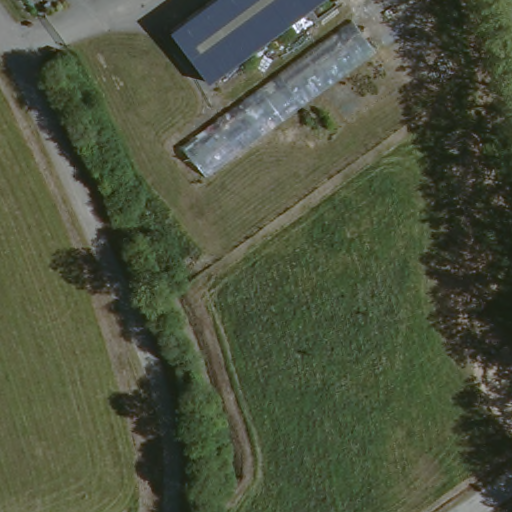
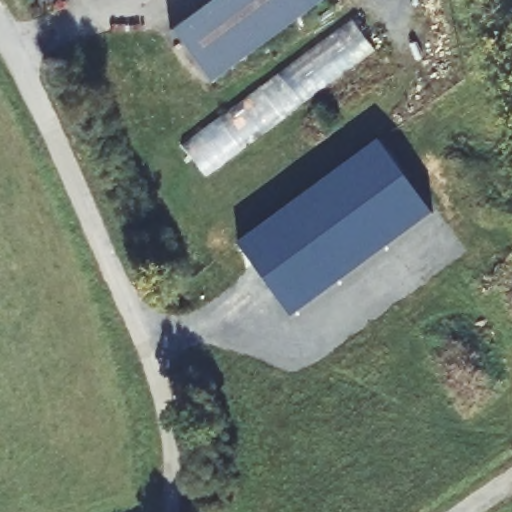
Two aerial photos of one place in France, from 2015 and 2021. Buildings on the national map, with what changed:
unchanged [(207,84),(167,37),(213,0),(319,0),(207,84)]
new [(378,141),(432,213),(291,317),(237,244),(378,141)]

